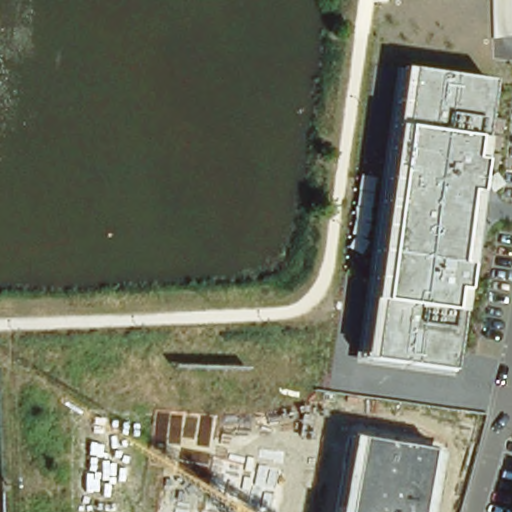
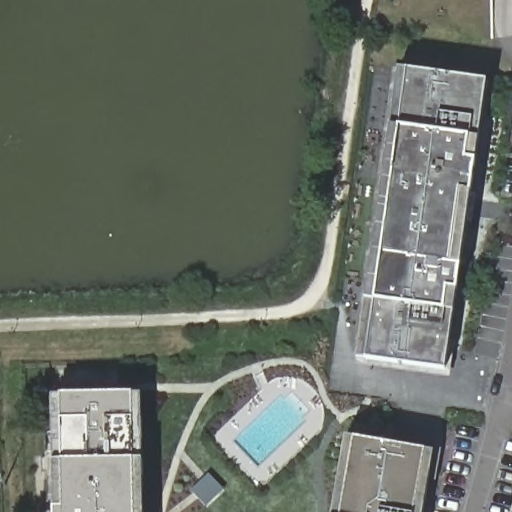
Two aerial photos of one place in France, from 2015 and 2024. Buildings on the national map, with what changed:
unchanged [(447,372),(355,360),(397,67),(486,80),(447,372)]
new [(147,390),(149,512),(56,512),(55,390),(147,390)]
unchanged [(423,512),(334,512),(346,439),(433,454),(423,512)]

